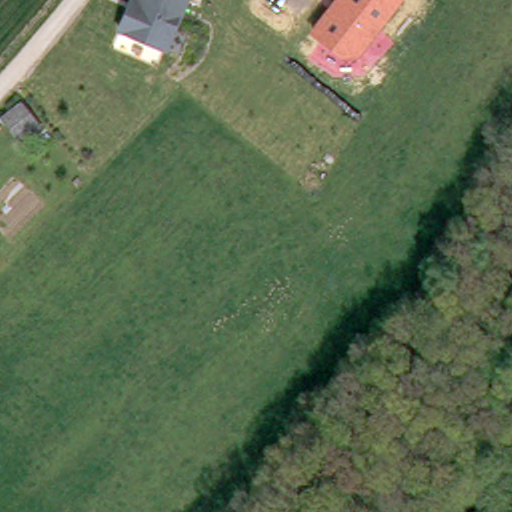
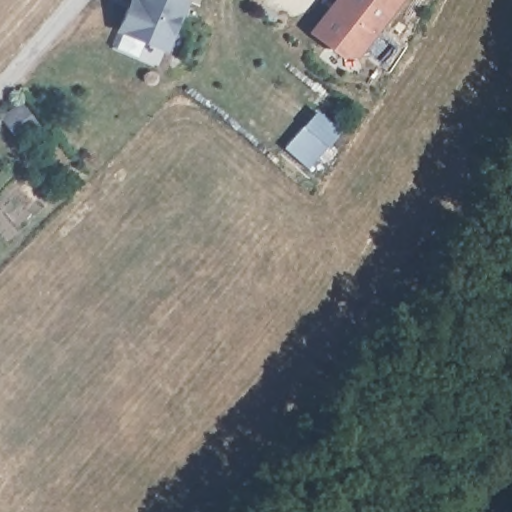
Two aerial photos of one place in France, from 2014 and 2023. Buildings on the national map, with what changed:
unchanged [(127,9),(133,11),(136,0),(184,0),(164,49),(120,32),(127,9)]
unchanged [(344,56),(310,28),(332,0),(401,0),(358,55),(344,56)]
new [(340,131),(307,167),(284,147),(317,110),(340,131)]

